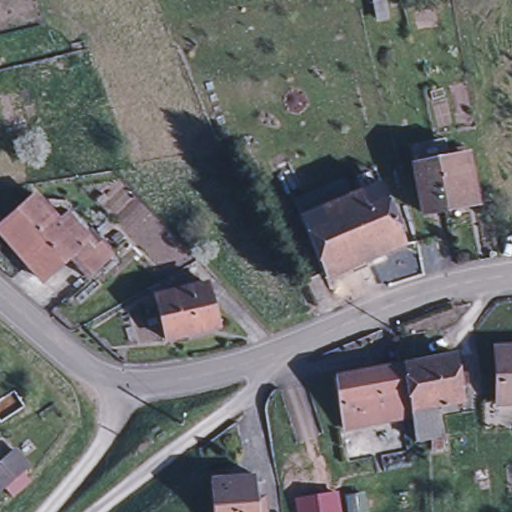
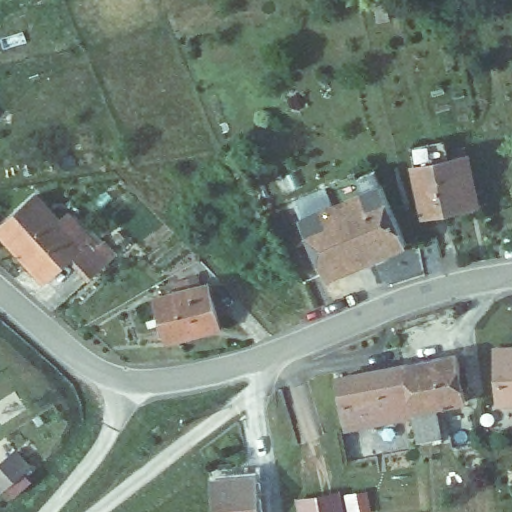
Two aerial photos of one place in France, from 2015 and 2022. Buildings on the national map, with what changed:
unchanged [(473,184),(465,185),(468,204),(423,212),(415,165),(468,155),(473,184)]
unchanged [(381,183),(406,244),(327,277),(300,217),(381,183)]
unchanged [(70,257),(45,280),(0,229),(0,226),(35,194),(59,220),(67,212),(97,245),(101,241),(114,255),(89,277),(70,257)]
unchanged [(220,326),(167,340),(157,295),(192,286),(189,276),(197,275),(200,285),(208,282),(220,326)]
unchanged [(499,402),(497,347),(512,347),(512,402),(499,402)]
unchanged [(405,363),(457,353),(460,373),(467,372),(470,384),(462,385),(465,400),(436,405),(440,436),(417,440),(412,415),(412,411),(405,363)]
unchanged [(405,363),(412,411),(412,415),(343,427),(337,376),(405,363)]
unchanged [(0,490),(0,464),(16,450),(29,465),(22,470),(31,480),(13,495),(5,485),(0,490)]
unchanged [(257,475),(259,496),(267,496),(268,512),(214,512),(212,489),(211,478),(257,475)]
unchanged [(347,496),(365,493),(369,511),(366,512),(350,512),(347,496)]

